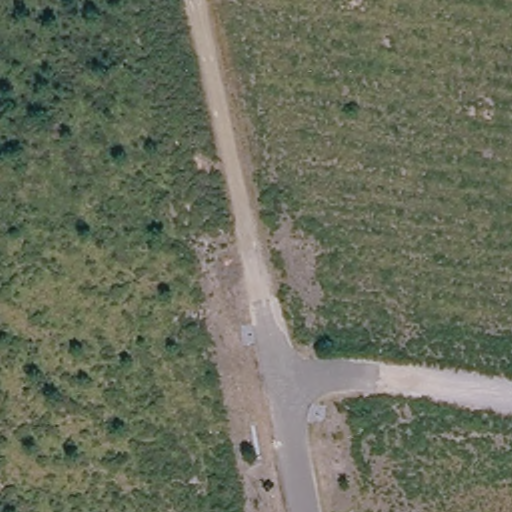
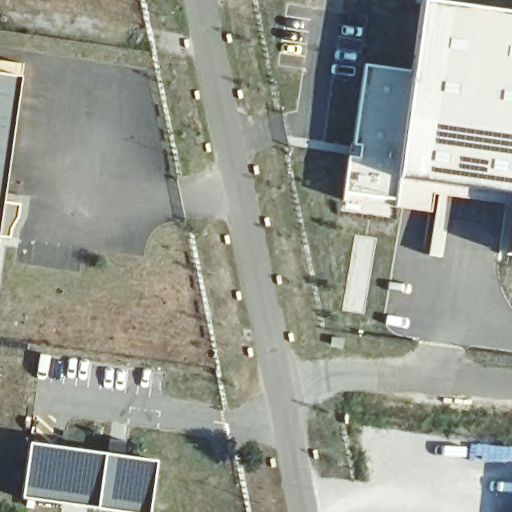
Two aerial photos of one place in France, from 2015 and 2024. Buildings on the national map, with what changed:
new [(414,69),(423,0),(426,0),(512,12),(512,192),(435,179),(431,211),(397,205),(344,197),(351,142),(355,143),(367,64),(414,69)]
unchanged [(0,62),(23,65),(21,77),(5,201),(21,204),(19,218),(12,228),(10,237),(0,234),(0,62)]
new [(510,253),(512,240),(512,253),(510,253)]
new [(159,461),(153,512),(119,512),(98,509),(21,498),(30,443),(106,453),(159,461)]

